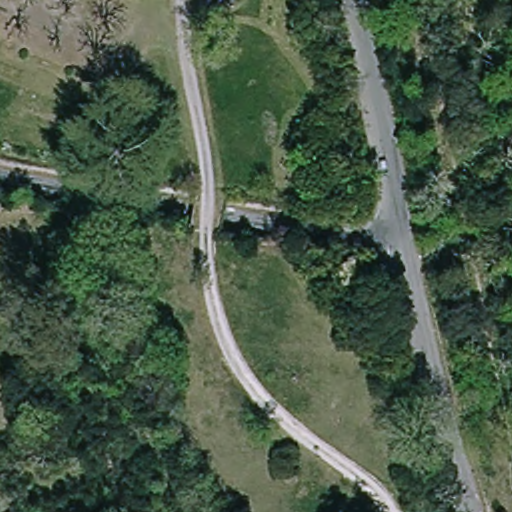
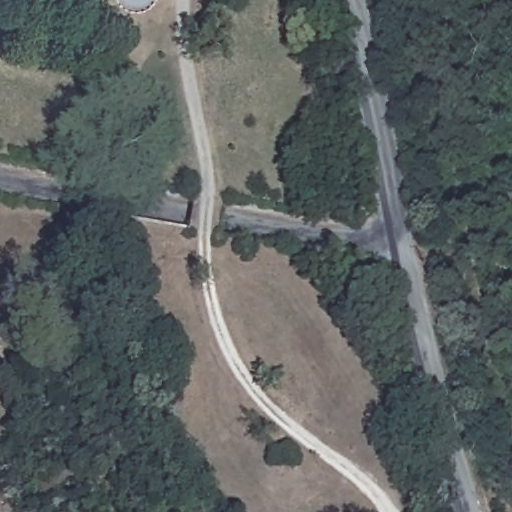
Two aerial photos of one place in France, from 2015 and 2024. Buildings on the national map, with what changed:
unchanged [(127,2),(118,0),(135,0),(133,1),(127,2)]

